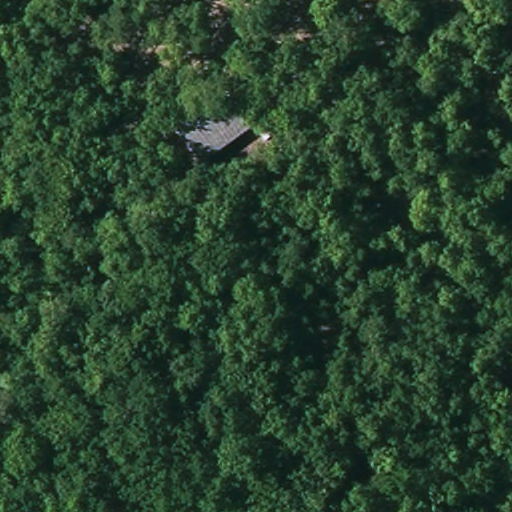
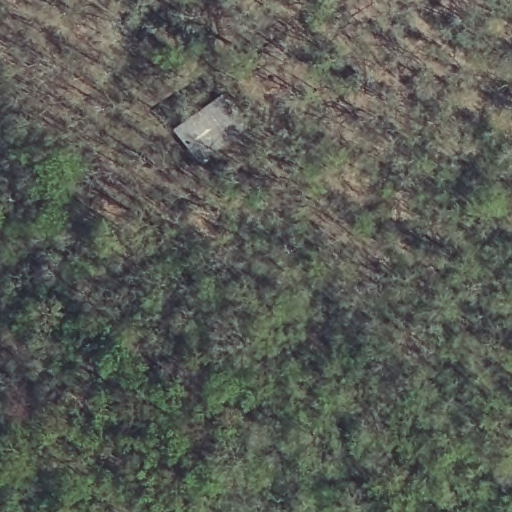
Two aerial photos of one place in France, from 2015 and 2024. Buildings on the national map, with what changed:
unchanged [(241,130),(198,164),(178,124),(223,96),(241,130)]

